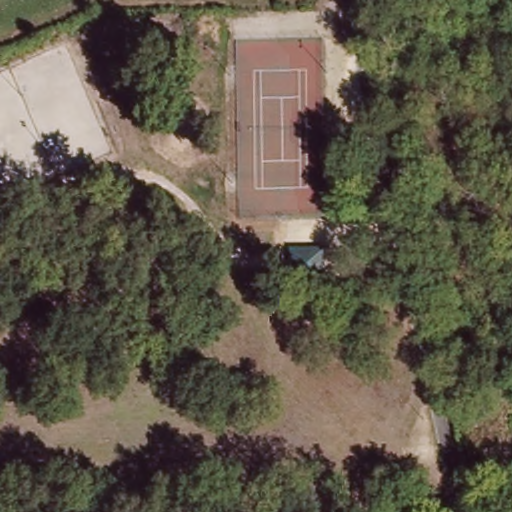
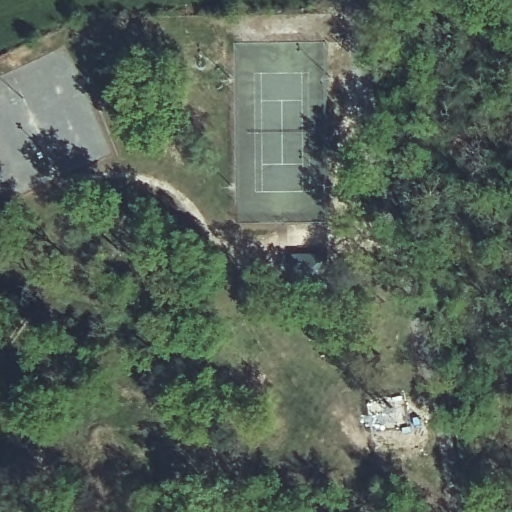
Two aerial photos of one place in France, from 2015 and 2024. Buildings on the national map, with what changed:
unchanged [(294,258),(325,258),(325,291),(294,290),(294,258)]

